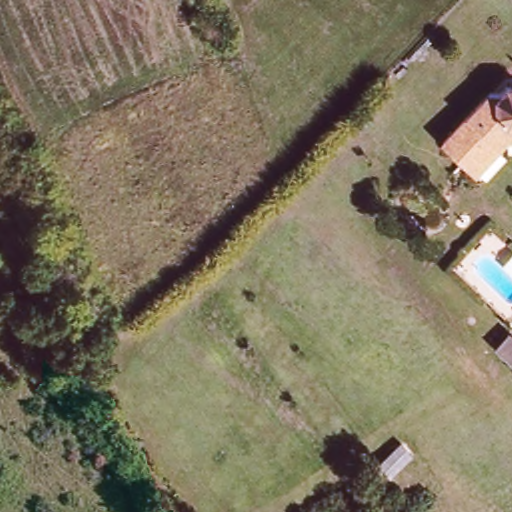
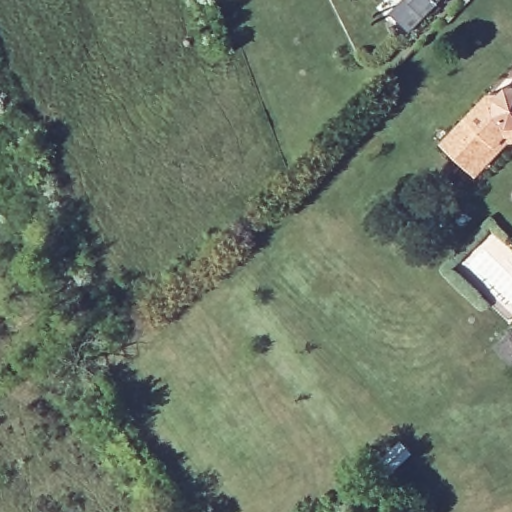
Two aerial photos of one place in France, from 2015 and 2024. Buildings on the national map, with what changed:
new [(392,13),(404,0),(440,0),(410,31),(392,13)]
unchanged [(475,172),(447,146),(493,95),(507,94),(512,89),(512,136),(508,137),(475,172)]

